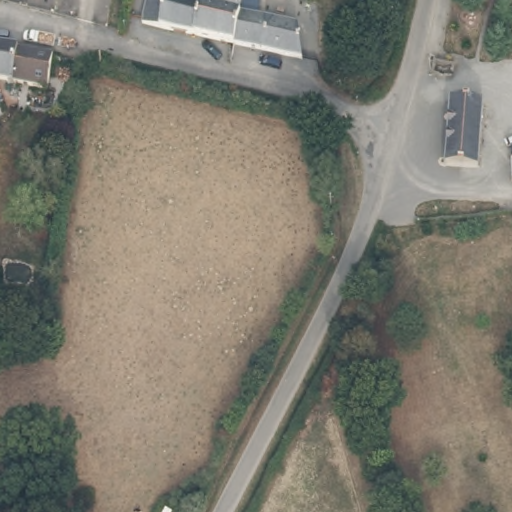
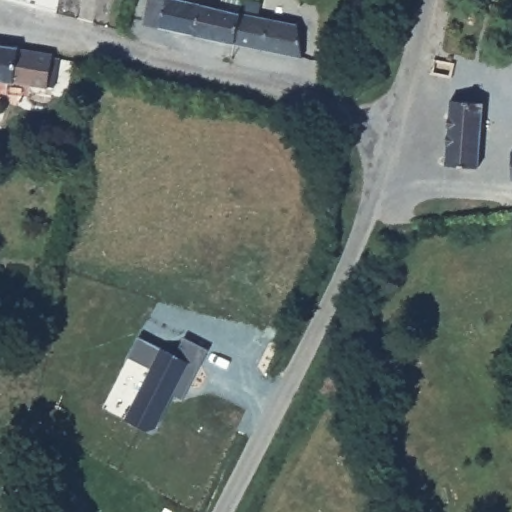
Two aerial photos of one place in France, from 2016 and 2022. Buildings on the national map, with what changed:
unchanged [(142,26),(147,0),(181,0),(218,7),(220,0),(244,0),(241,12),(238,30),(236,45),(142,26)]
unchanged [(236,45),(238,30),(241,12),(300,23),(305,59),(236,45)]
unchanged [(0,86),(0,47),(21,50),(16,87),(0,86)]
unchanged [(21,50),(52,54),(49,91),(16,87),(21,50)]
unchanged [(432,75),(432,74),(436,59),(457,62),(454,78),(432,75)]
unchanged [(445,165),(452,102),(485,105),(479,169),(445,165)]
new [(150,368),(129,357),(138,338),(161,349),(163,346),(176,353),(186,337),(208,349),(182,399),(172,394),(156,426),(149,431),(125,418),(150,368)]
demolished [(191,498),(199,483),(213,490),(205,505),(191,498)]

